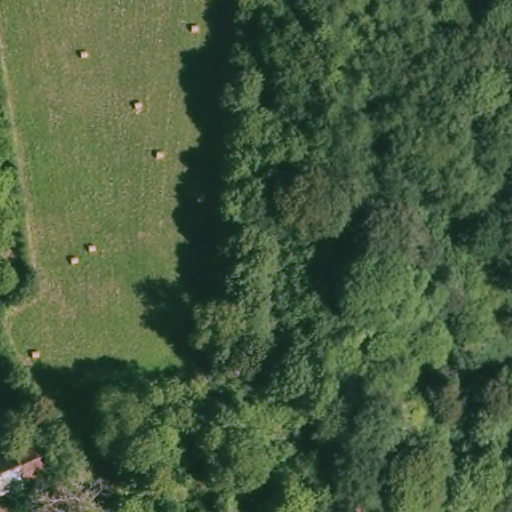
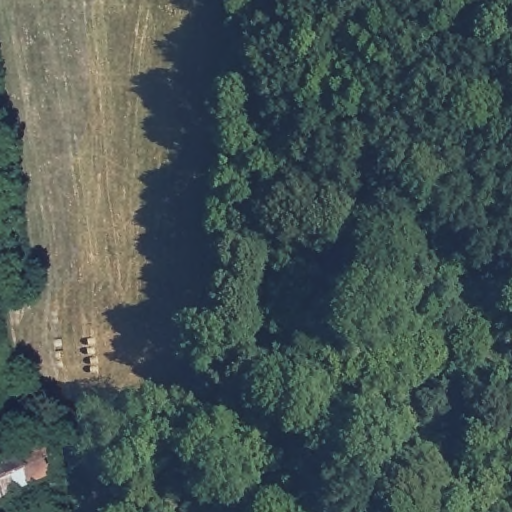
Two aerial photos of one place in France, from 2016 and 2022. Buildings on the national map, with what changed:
unchanged [(30,451),(40,473),(12,485),(0,458),(0,452),(25,440),(30,451)]
unchanged [(0,491),(0,458),(12,485),(0,491)]

